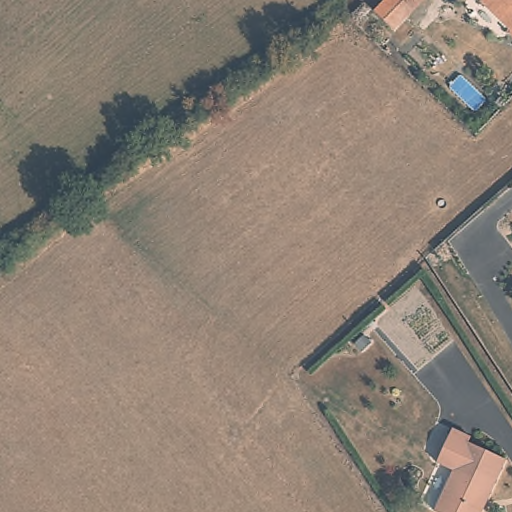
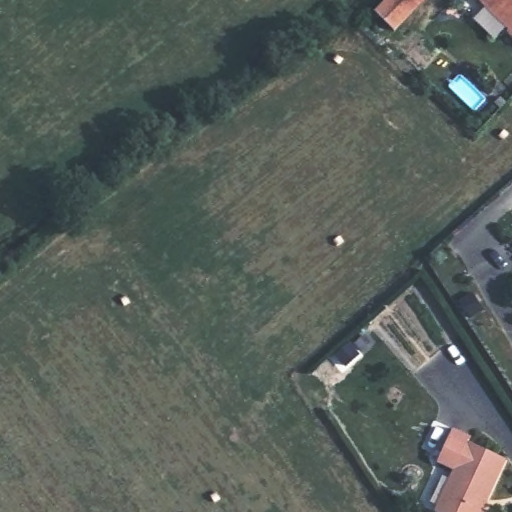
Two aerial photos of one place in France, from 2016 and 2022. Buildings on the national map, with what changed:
unchanged [(371,11),(382,0),(422,0),(391,32),(371,11)]
unchanged [(502,32),(476,0),(512,0),(512,42),(502,32)]
unchanged [(467,438),(464,442),(502,461),(477,512),(431,512),(451,472),(432,463),(449,429),(467,438)]

